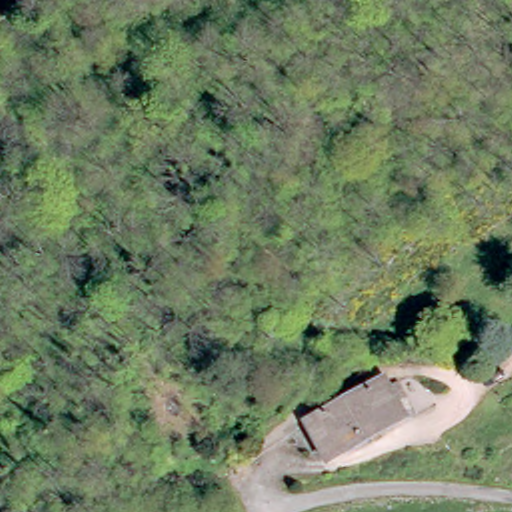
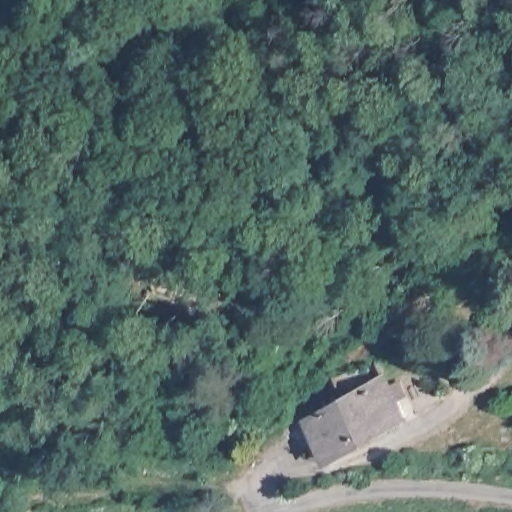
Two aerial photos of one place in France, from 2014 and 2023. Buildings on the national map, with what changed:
unchanged [(501,345),(512,339),(512,352),(506,355),(501,345)]
unchanged [(327,450),(303,411),(323,398),(321,395),(340,383),(347,395),(385,373),(389,380),(398,374),(406,387),(393,394),(403,410),(330,449),(327,450)]

